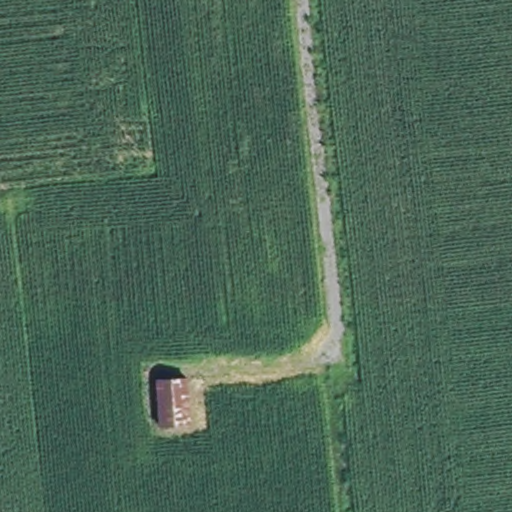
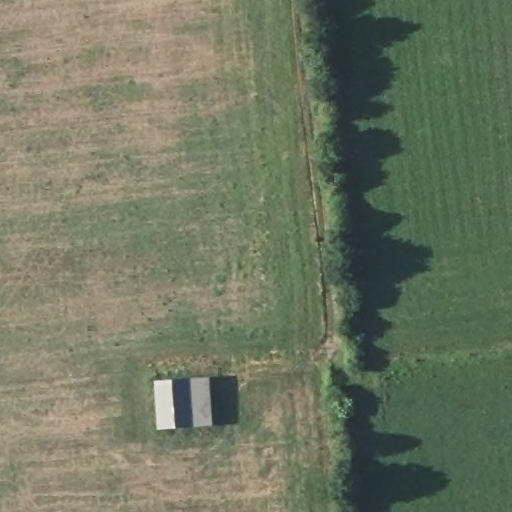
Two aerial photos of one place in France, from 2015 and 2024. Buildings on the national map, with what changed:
demolished [(184,377),(186,423),(156,424),(152,379),(184,377)]
new [(209,377),(211,425),(157,429),(155,382),(209,377)]

